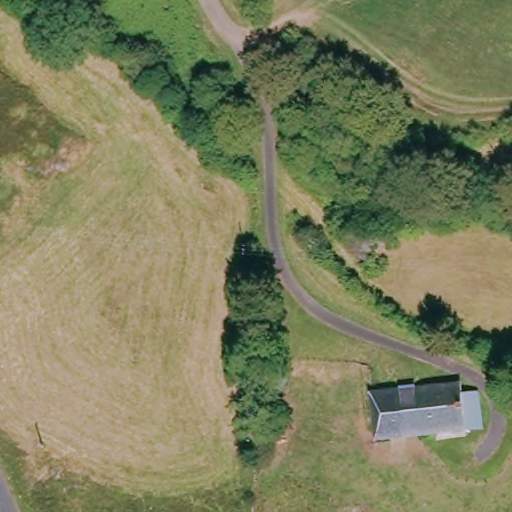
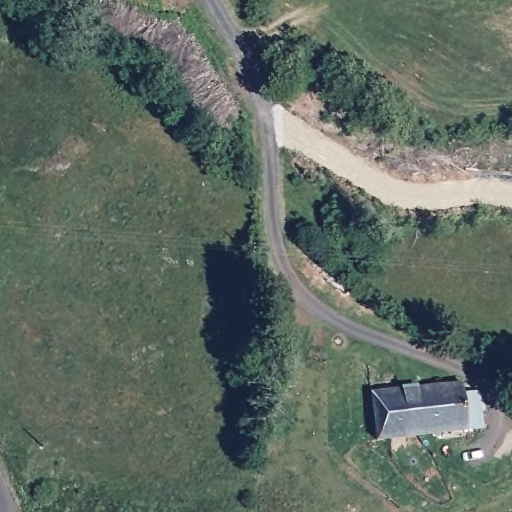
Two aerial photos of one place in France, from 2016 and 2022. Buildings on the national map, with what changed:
unchanged [(472,385),(474,401),(494,398),(501,431),(384,448),(377,399),(472,385)]

